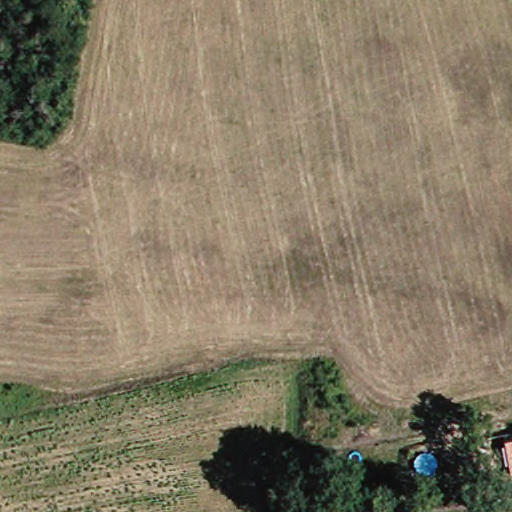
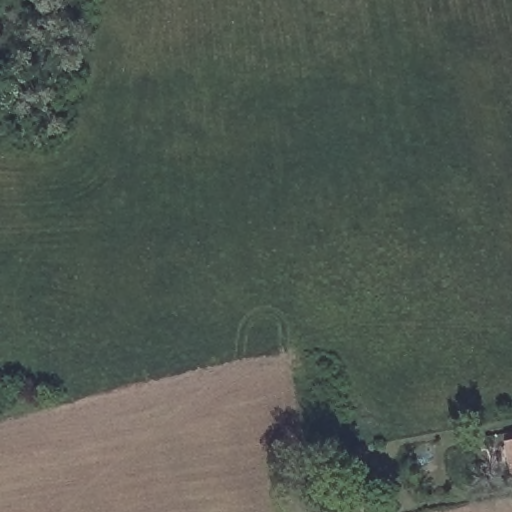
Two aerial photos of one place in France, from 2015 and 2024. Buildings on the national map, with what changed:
unchanged [(509,474),(504,441),(512,440),(512,473),(509,474)]

